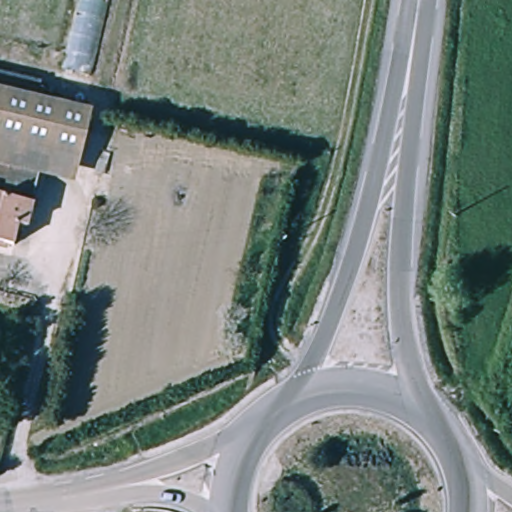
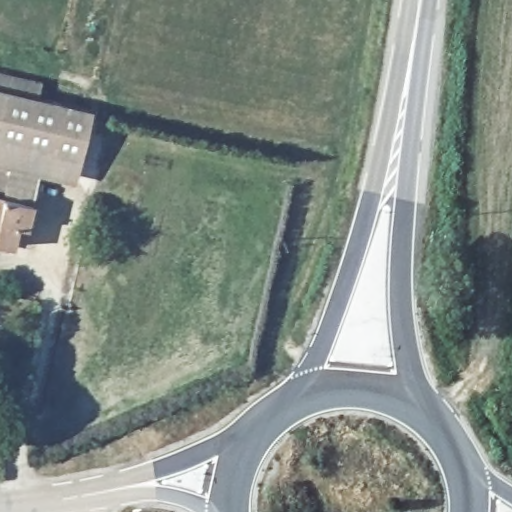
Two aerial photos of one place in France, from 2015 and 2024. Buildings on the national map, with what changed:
demolished [(80,0),(113,0),(94,79),(63,70),(80,0)]
unchanged [(87,110),(77,155),(0,142),(0,94),(87,110)]
unchanged [(32,226),(20,224),(17,247),(0,245),(0,166),(40,172),(39,179),(32,226)]

